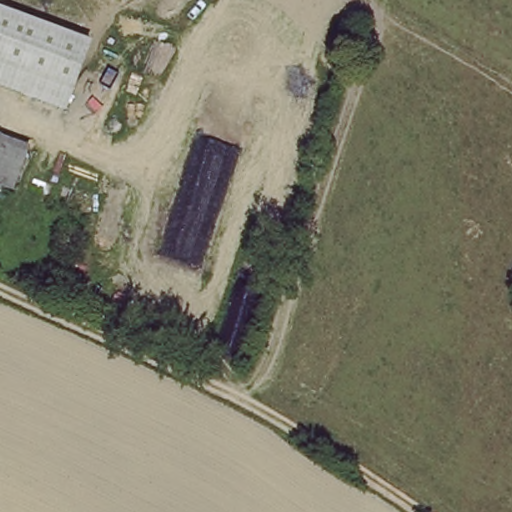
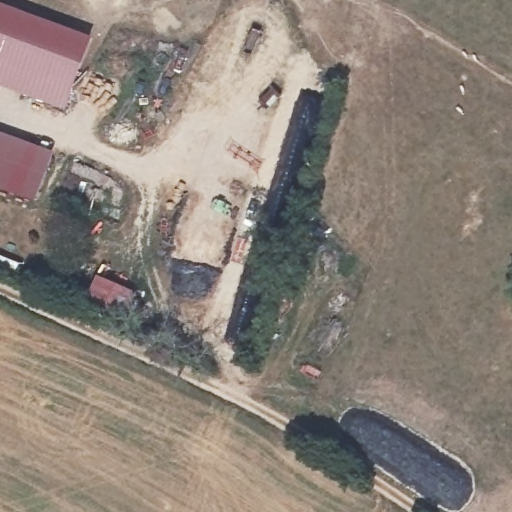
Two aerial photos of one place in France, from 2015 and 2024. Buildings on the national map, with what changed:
unchanged [(70,100),(13,78),(0,73),(0,14),(23,24),(89,50),(70,100)]
new [(0,188),(0,135),(53,154),(35,203),(0,188)]

